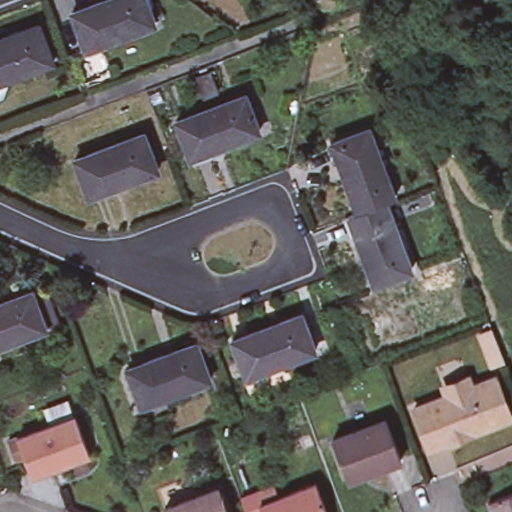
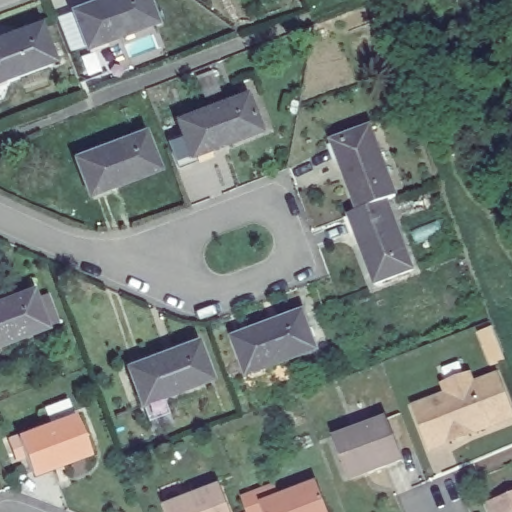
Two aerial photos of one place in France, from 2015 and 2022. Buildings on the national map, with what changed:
unchanged [(135,35),(130,20),(81,37),(68,1),(71,0),(146,0),(150,12),(155,27),(135,35)]
unchanged [(0,70),(0,30),(39,15),(53,50),(58,64),(38,72),(32,58),(0,70)]
unchanged [(192,153),(177,115),(246,90),(260,126),(192,153)]
unchanged [(90,189),(75,148),(145,122),(160,163),(90,189)]
unchanged [(335,137),(371,123),(397,191),(386,195),(360,204),(335,137)]
unchanged [(360,204),(386,195),(411,263),(375,276),(350,208),(360,204)]
unchanged [(0,298),(33,287),(46,324),(0,339),(0,298)]
unchanged [(248,369),(235,333),(303,307),(316,343),(248,369)]
unchanged [(140,402),(127,366),(197,341),(210,377),(140,402)]
unchanged [(417,407),(450,395),(448,389),(473,378),(476,385),(500,376),(512,411),(512,418),(433,449),(417,407)]
unchanged [(6,436),(16,432),(53,419),(46,402),(68,394),(75,410),(90,448),(52,463),(51,458),(30,467),(23,450),(14,454),(6,436)]
unchanged [(347,469),(334,435),(388,413),(405,453),(376,464),(350,475),(347,469)]
unchanged [(252,479),(260,498),(315,476),(328,510),(329,512),(251,512),(240,484),(252,479)]
unchanged [(219,481),(231,512),(170,512),(165,501),(219,481)]
unchanged [(512,487),(512,512),(496,512),(490,495),(512,487)]

